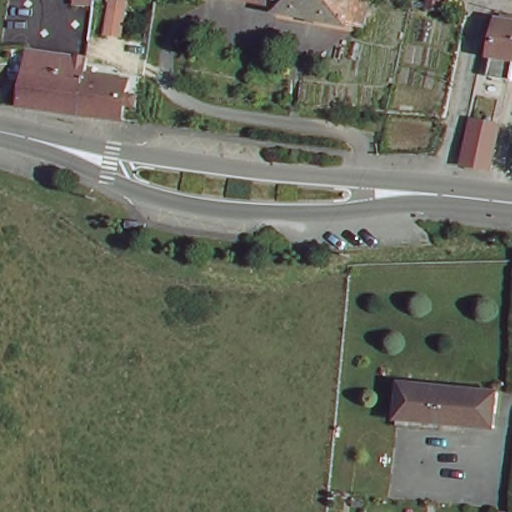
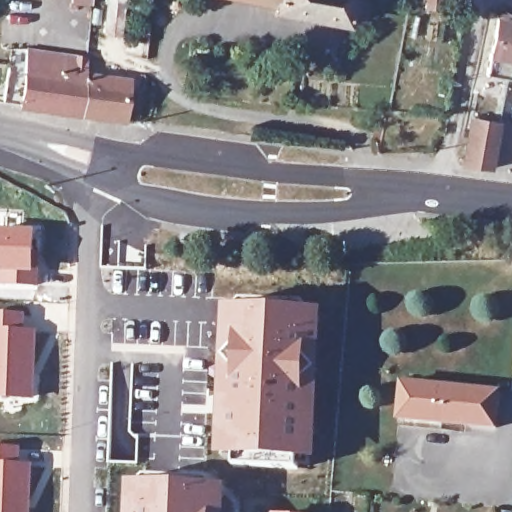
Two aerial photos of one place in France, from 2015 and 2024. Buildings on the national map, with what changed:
unchanged [(260,6),(261,0),(350,0),(345,24),(260,6)]
unchanged [(442,16),(425,10),(425,7),(428,0),(440,0),(445,1),(444,7),(442,16)]
unchanged [(127,12),(124,41),(106,40),(108,10),(127,12)]
unchanged [(488,76),(500,19),(512,21),(512,61),(509,81),(488,76)]
unchanged [(512,61),(512,81),(509,81),(512,61)]
unchanged [(21,62),(77,68),(76,81),(73,120),(27,113),(17,111),(21,62)]
unchanged [(76,81),(120,86),(119,96),(127,96),(126,109),(118,108),(117,125),(73,120),(76,81)]
unchanged [(472,124),(499,130),(486,174),(460,170),(472,124)]
new [(35,229),(35,275),(22,275),(21,285),(0,285),(0,228),(35,229)]
new [(221,304),(268,303),(322,306),(316,460),(299,460),(298,470),(284,470),(284,464),(255,464),(255,469),(233,467),(233,457),(215,456),(221,304)]
new [(25,311),(25,328),(37,329),(34,399),(0,398),(0,311),(25,311)]
unchanged [(399,385),(495,393),(493,433),(397,425),(399,385)]
new [(20,445),(20,462),(32,462),(30,512),(0,512),(0,444),(20,445)]
new [(125,479),(200,480),(226,485),(225,512),(124,512),(125,479)]

